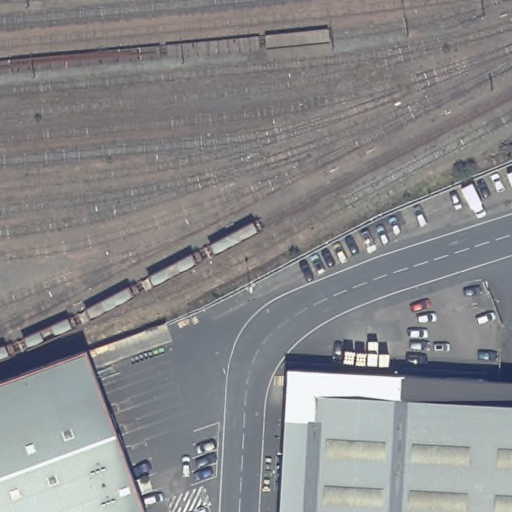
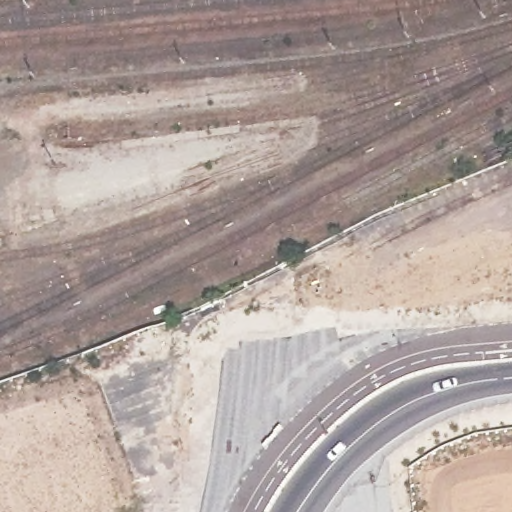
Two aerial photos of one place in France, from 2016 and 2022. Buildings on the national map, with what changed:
demolished [(79,356),(137,512),(0,512),(0,384),(79,356)]
demolished [(323,425),(328,375),(496,384),(495,411),(512,412),(512,512),(290,512),(295,423),(323,425)]

